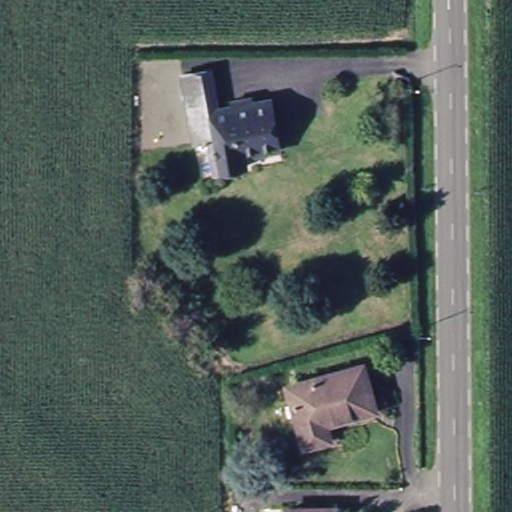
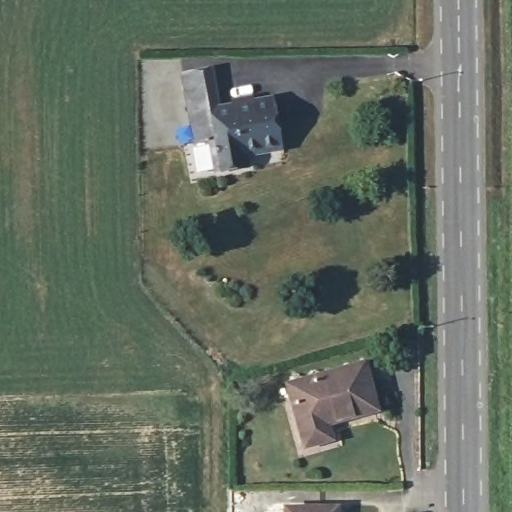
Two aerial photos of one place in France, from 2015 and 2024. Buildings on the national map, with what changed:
unchanged [(271,93),(280,149),(246,157),(247,162),(216,166),(212,141),(194,143),(184,85),(181,70),(213,65),(216,80),(219,100),(271,93)]
unchanged [(362,364),(379,416),(326,430),(331,445),(305,454),(284,388),(362,364)]
unchanged [(336,508),(337,512),(282,512),(282,508),(336,508)]

